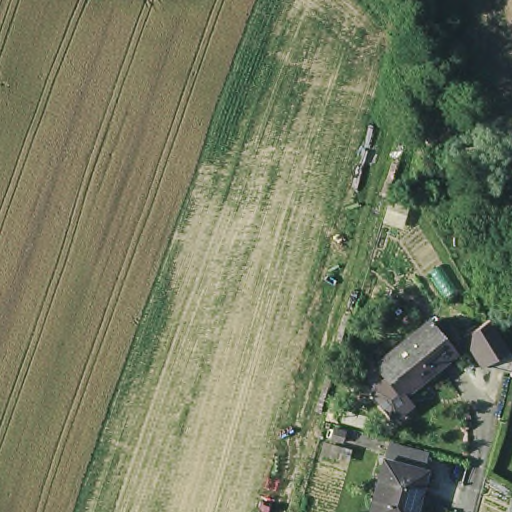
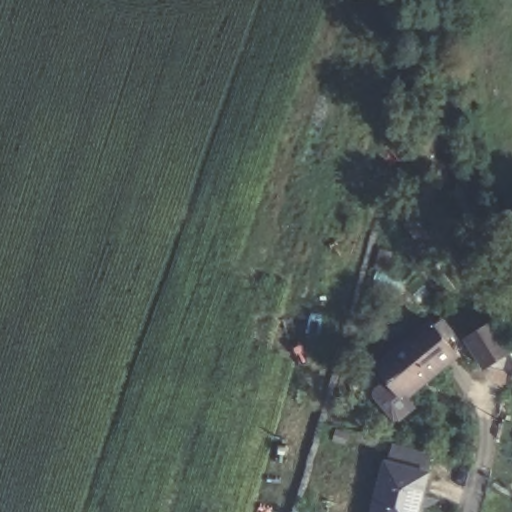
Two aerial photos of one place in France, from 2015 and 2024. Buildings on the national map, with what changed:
unchanged [(405,396),(378,364),(427,324),(431,320),(435,324),(457,353),(419,385),(405,396)]
unchanged [(462,337),(491,320),(512,353),(512,354),(482,371),(462,337)]
unchanged [(392,468),(395,452),(407,455),(432,461),(428,477),(431,478),(423,512),(380,512),(392,468)]

